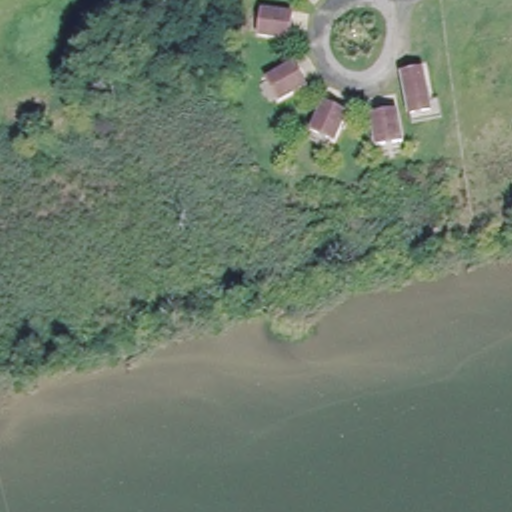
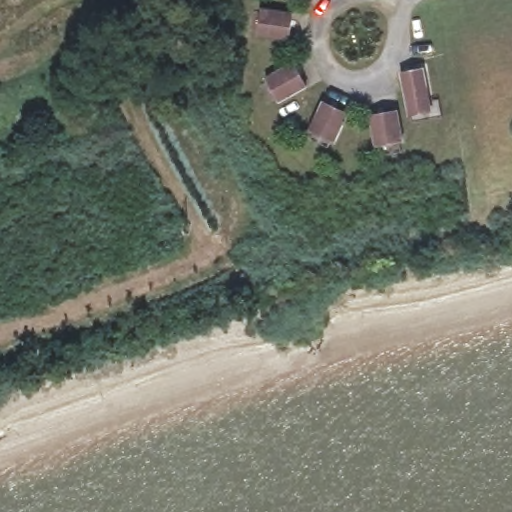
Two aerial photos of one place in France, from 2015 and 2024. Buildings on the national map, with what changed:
unchanged [(259,9),(287,14),(283,38),(255,33),(259,9)]
unchanged [(275,97),(264,75),(290,63),(301,86),(275,97)]
unchanged [(403,72),(422,70),(429,109),(410,111),(403,72)]
unchanged [(333,141),(310,129),(322,106),(344,116),(333,141)]
unchanged [(367,115),(392,110),(397,138),(371,142),(367,115)]

